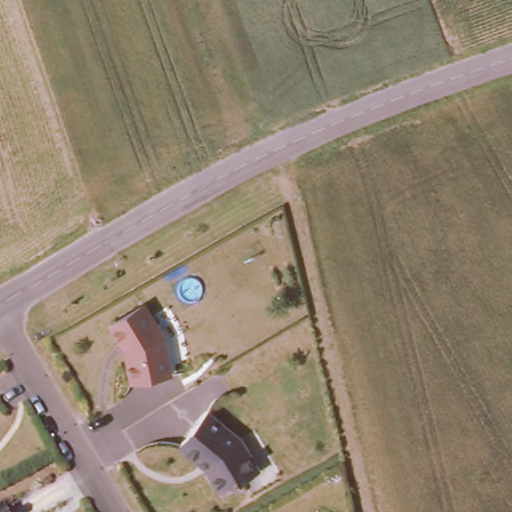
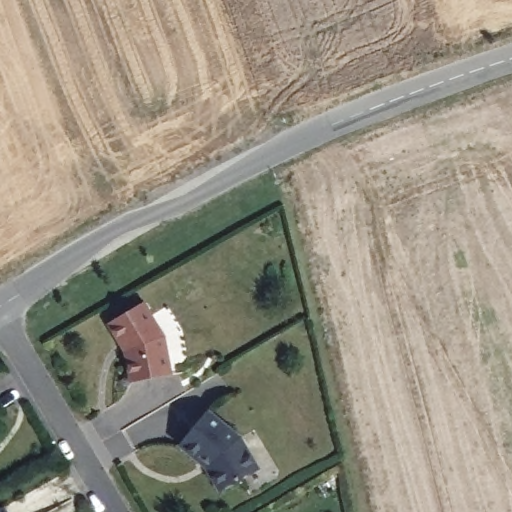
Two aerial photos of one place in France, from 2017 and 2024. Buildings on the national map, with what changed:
unchanged [(123,382),(121,356),(102,325),(141,303),(165,338),(167,377),(123,382)]
unchanged [(215,493),(200,468),(175,446),(206,413),(243,442),(253,470),(215,493)]
unchanged [(9,512),(0,512),(0,505),(4,503),(9,512)]

